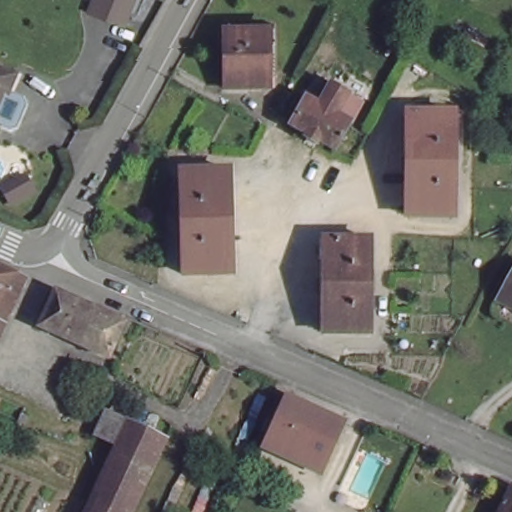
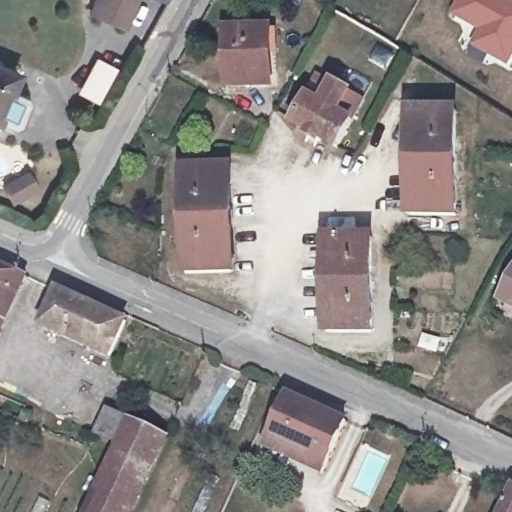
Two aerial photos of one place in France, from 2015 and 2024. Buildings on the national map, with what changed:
unchanged [(86,8),(90,0),(143,0),(150,3),(139,30),(86,8)]
unchanged [(150,3),(143,0),(172,0),(168,10),(150,3)]
new [(506,66),(470,45),(477,30),(450,15),(458,0),(512,0),(512,55),(506,66)]
unchanged [(230,30),(273,30),(273,87),(229,87),(230,30)]
unchanged [(11,72),(0,109),(0,68),(11,72)]
unchanged [(347,125),(361,133),(347,158),(346,160),(324,148),(301,137),(302,134),(315,110),(327,87),(341,94),(359,104),(347,125)]
unchanged [(410,108),(457,109),(458,214),(410,214),(410,108)]
unchanged [(184,167),(228,165),(233,271),(185,272),(184,167)]
unchanged [(4,180),(28,167),(36,184),(12,196),(4,180)]
unchanged [(373,240),(372,334),(324,334),(325,241),(373,240)]
unchanged [(28,275),(0,336),(0,262),(28,275)]
unchanged [(501,300),(512,278),(512,306),(501,300)]
unchanged [(110,354),(43,322),(58,289),(126,321),(110,354)]
unchanged [(287,395),(344,421),(321,472),(263,445),(287,395)]
unchanged [(29,415),(26,422),(18,417),(21,411),(29,415)]
unchanged [(85,512),(118,443),(96,432),(105,411),(128,422),(165,439),(131,512),(85,512)]
unchanged [(512,493),(512,512),(502,512),(512,493)]

